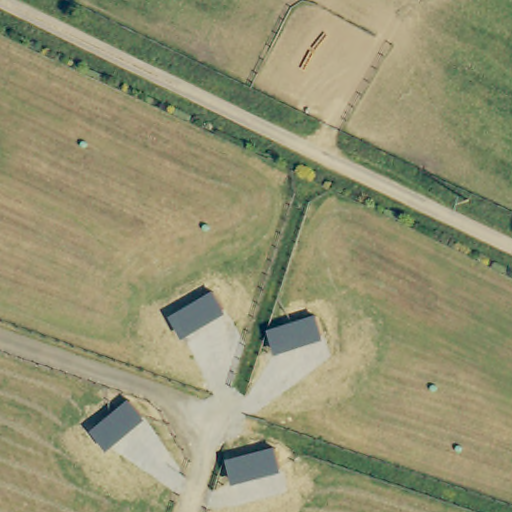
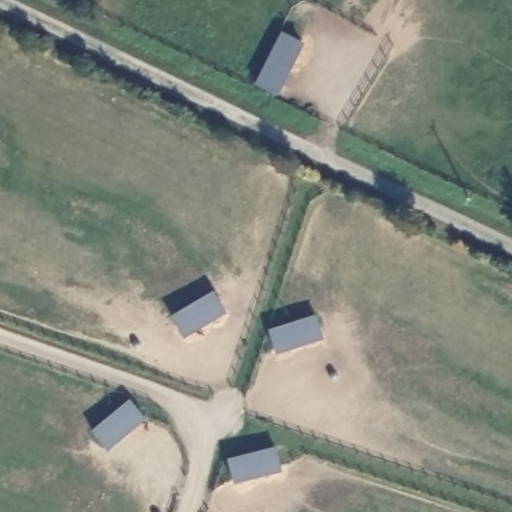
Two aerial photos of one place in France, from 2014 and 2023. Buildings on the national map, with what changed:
new [(304,43),(279,95),(254,83),(279,31),(304,43)]
unchanged [(172,317),(213,293),(226,314),(184,338),(172,317)]
unchanged [(315,315),(322,340),(276,355),(268,330),(315,315)]
unchanged [(91,430),(130,400),(147,420),(107,450),(91,430)]
unchanged [(228,461),(275,447),(282,473),(234,485),(228,461)]

